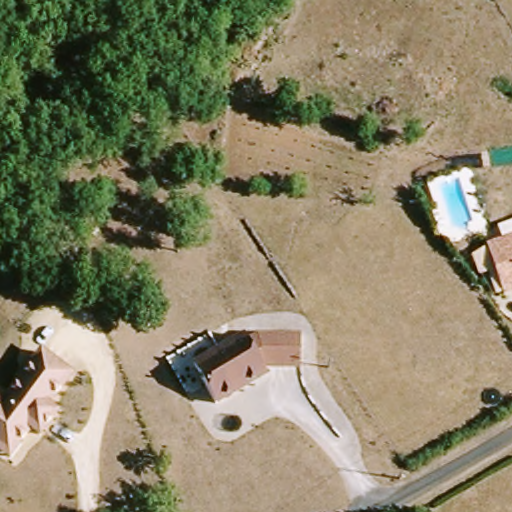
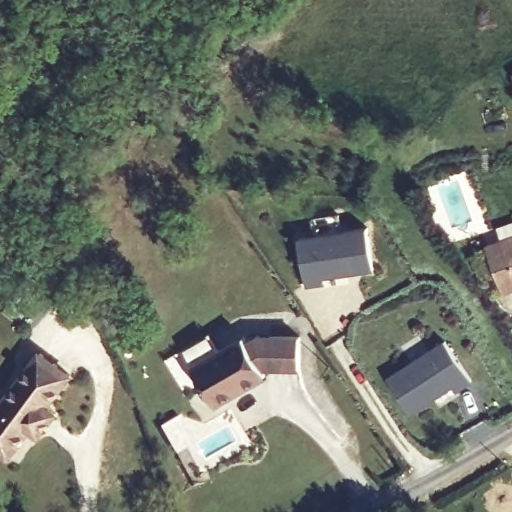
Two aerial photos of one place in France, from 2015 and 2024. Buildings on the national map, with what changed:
new [(369,228),(375,271),(326,278),(327,284),(307,287),(298,237),(369,228)]
unchanged [(496,241),(512,234),(512,282),(511,282),(496,241)]
new [(475,382),(459,392),(455,386),(412,415),(387,376),(445,338),(475,382)]
unchanged [(245,342),(249,346),(259,339),(302,339),(302,371),(264,372),(268,377),(218,409),(195,373),(245,342)]
unchanged [(1,401),(39,350),(74,377),(51,407),(60,414),(39,441),(32,436),(9,463),(0,457),(0,401),(1,401)]

